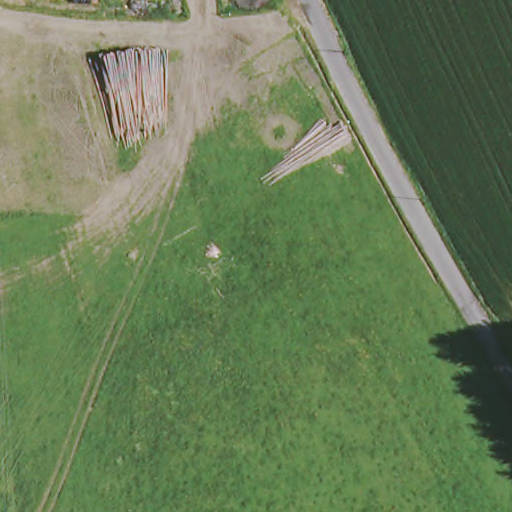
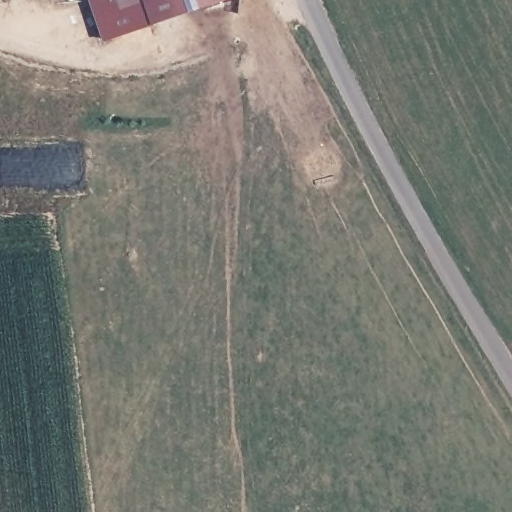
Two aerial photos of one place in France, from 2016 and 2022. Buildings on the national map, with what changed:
new [(104,41),(91,0),(226,0),(156,24),(104,41)]

